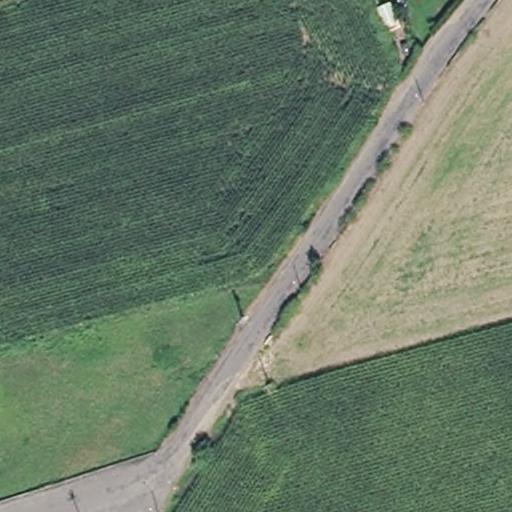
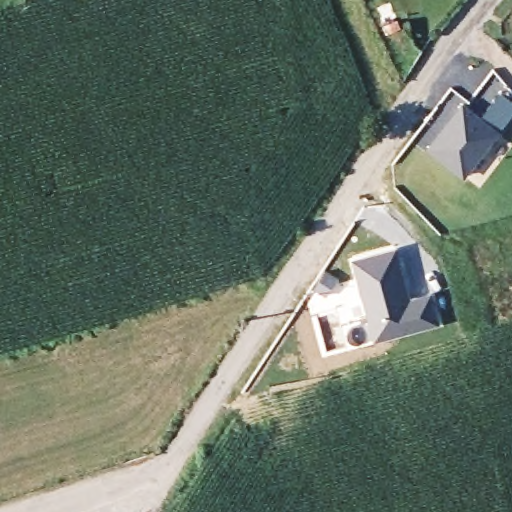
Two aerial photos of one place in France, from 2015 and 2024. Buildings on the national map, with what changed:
new [(439,130),(467,101),(482,114),(503,91),(512,98),(512,117),(502,130),(465,179),(417,144),(432,125),(439,130)]
new [(397,247),(409,297),(431,291),(441,322),(375,341),(352,259),(397,247)]

